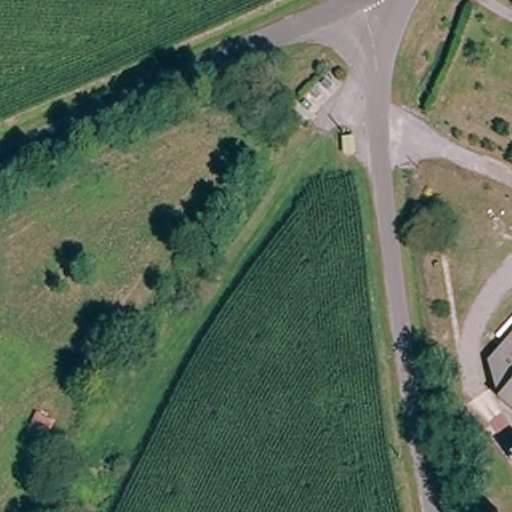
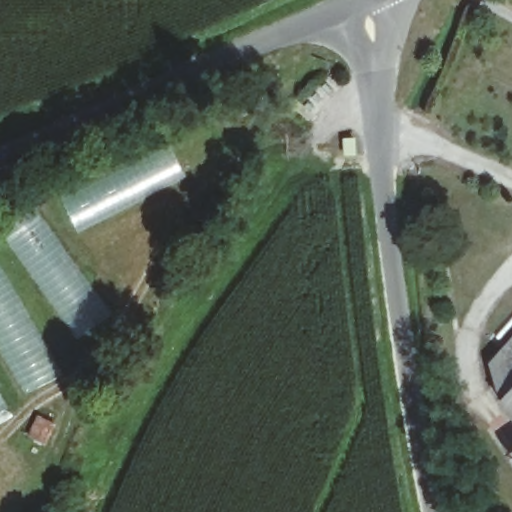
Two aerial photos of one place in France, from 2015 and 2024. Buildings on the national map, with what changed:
new [(76,231),(60,197),(169,144),(185,178),(76,231)]
new [(12,227),(22,219),(36,208),(112,313),(76,338),(2,235),(12,227)]
new [(26,394),(0,349),(0,266),(64,374),(26,394)]
unchanged [(491,355),(512,331),(512,372),(491,355)]
unchanged [(498,402),(483,364),(491,355),(512,372),(512,414),(498,402)]
new [(0,398),(6,408),(0,412),(0,398)]
new [(35,413),(56,423),(45,446),(25,436),(35,413)]

